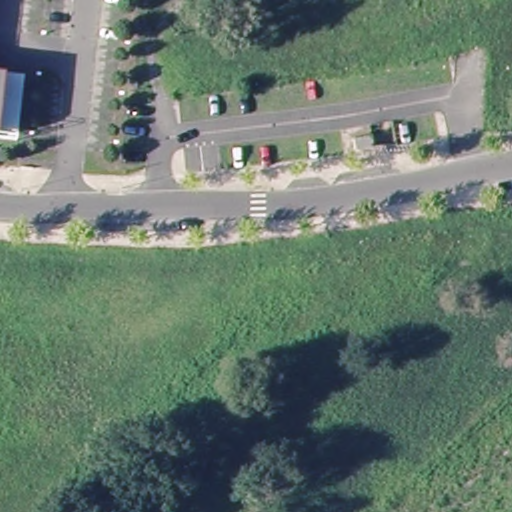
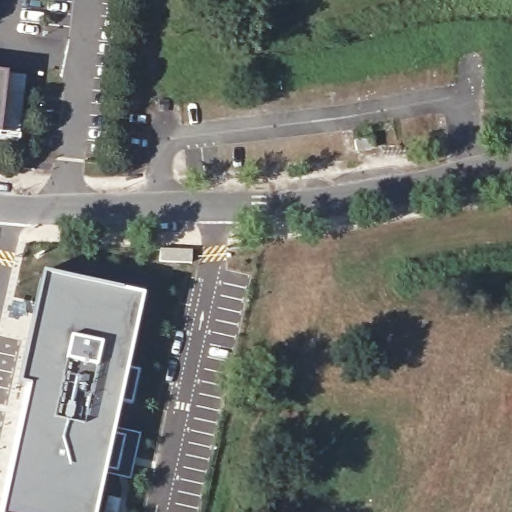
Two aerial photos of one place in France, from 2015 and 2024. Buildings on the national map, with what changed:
unchanged [(0,142),(0,137),(16,139),(15,144),(0,142)]
new [(374,137),(376,147),(358,151),(356,141),(374,137)]
new [(103,471),(94,512),(0,512),(0,509),(29,383),(19,381),(45,271),(144,294),(127,365),(140,367),(133,400),(120,397),(113,425),(141,431),(131,477),(103,471)]

